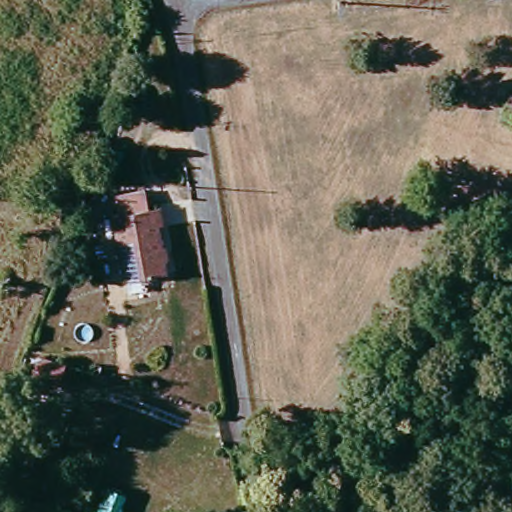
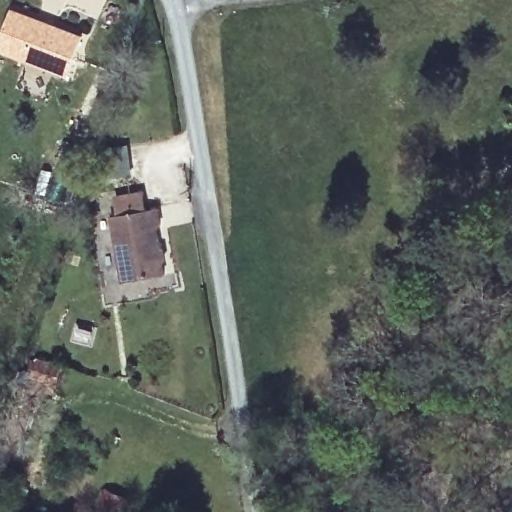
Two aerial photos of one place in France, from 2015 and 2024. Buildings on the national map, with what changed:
new [(83,36),(68,77),(0,51),(0,45),(12,10),(83,36)]
unchanged [(149,214),(159,212),(163,233),(156,235),(164,281),(124,288),(112,221),(121,219),(117,201),(146,196),(149,214)]
unchanged [(66,361),(60,382),(36,375),(41,355),(66,361)]

